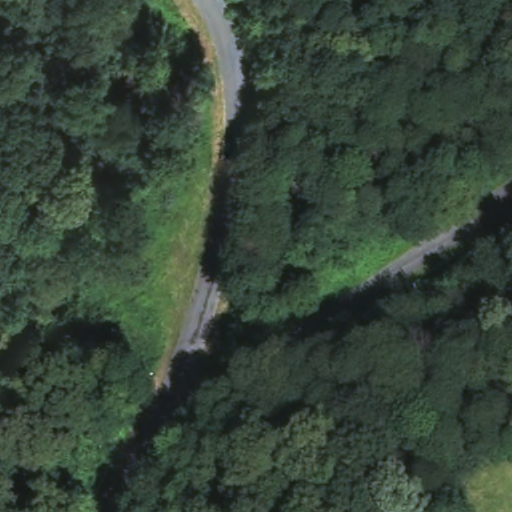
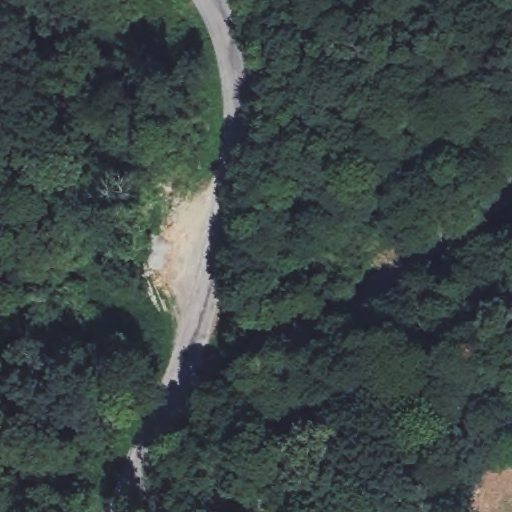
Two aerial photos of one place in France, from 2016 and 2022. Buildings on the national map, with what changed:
unchanged [(456,478),(424,488),(418,470),(450,462),(456,478)]

